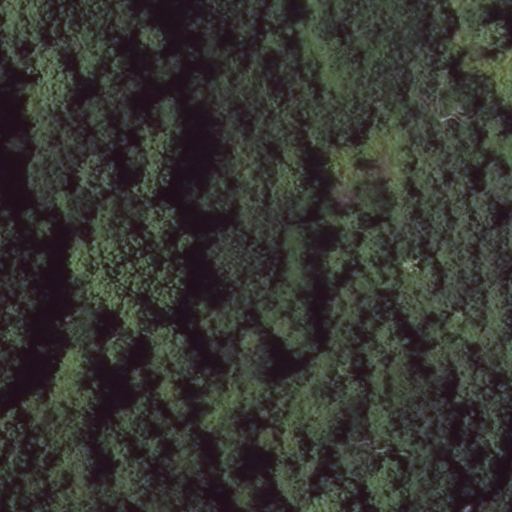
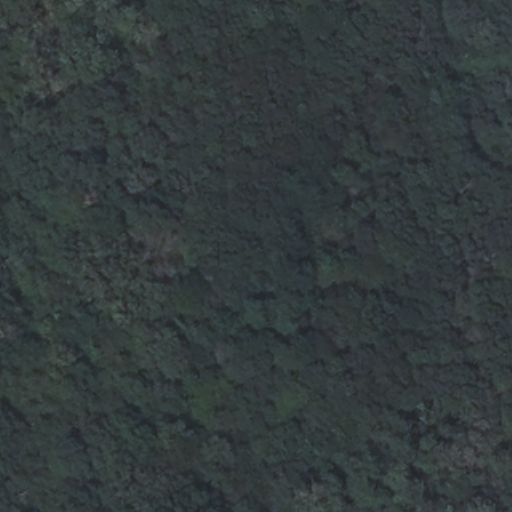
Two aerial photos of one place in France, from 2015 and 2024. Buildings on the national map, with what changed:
[]

